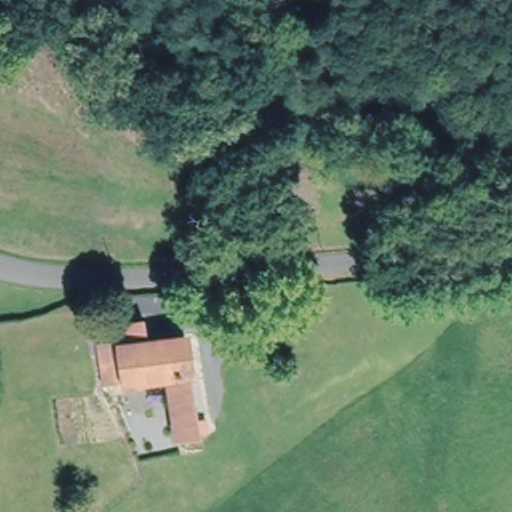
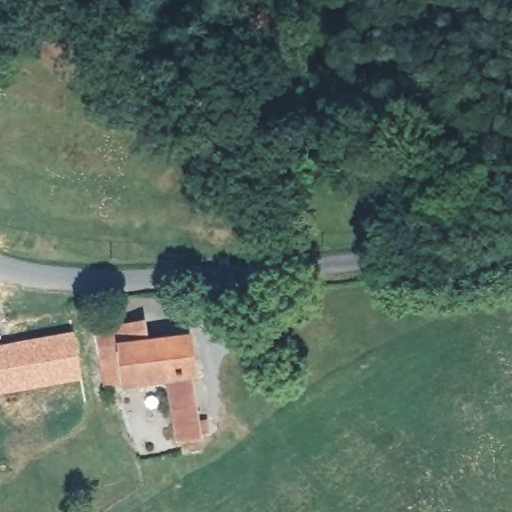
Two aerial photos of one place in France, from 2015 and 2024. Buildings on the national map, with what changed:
unchanged [(190,370),(187,371),(199,446),(176,450),(163,374),(105,383),(99,347),(95,327),(142,320),(145,341),(186,336),(190,370)]
new [(72,330),(80,379),(0,394),(0,344),(72,330)]

